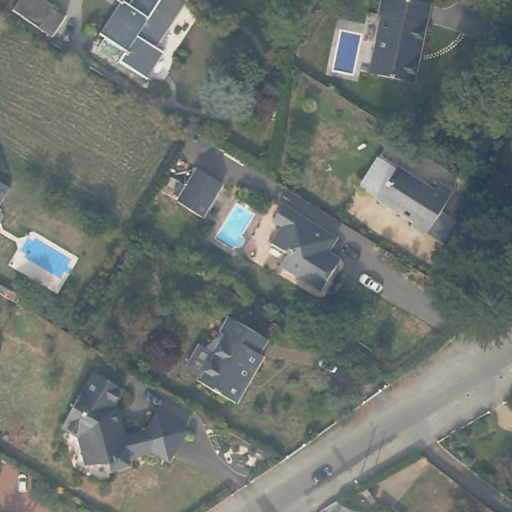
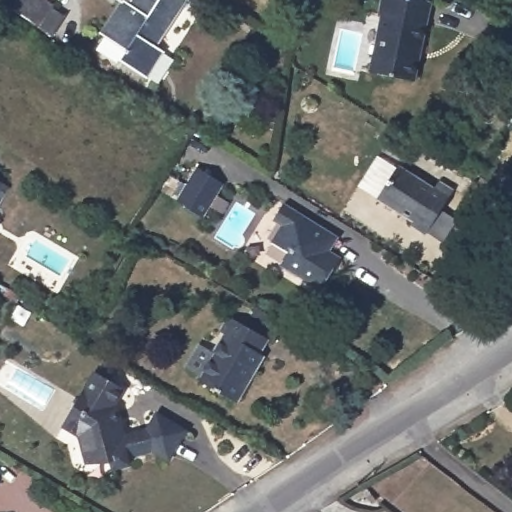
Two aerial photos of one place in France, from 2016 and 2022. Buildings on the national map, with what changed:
unchanged [(37,13),(54,23),(43,40),(4,15),(12,0),(24,0),(40,8),(37,13)]
unchanged [(121,65),(116,69),(95,56),(103,44),(96,40),(120,6),(116,4),(118,0),(184,0),(187,2),(155,50),(160,54),(167,59),(150,84),(143,79),(121,65)]
unchanged [(374,66),(382,13),(376,12),(377,0),(428,0),(417,74),(374,66)]
unchanged [(471,79),(510,105),(470,165),(431,140),(471,79)]
unchanged [(442,183),(457,192),(430,236),(416,228),(418,224),(381,202),(381,201),(363,191),(381,161),(399,171),(400,170),(437,192),(442,183)]
unchanged [(9,185),(0,202),(0,181),(9,185)]
unchanged [(188,192),(213,208),(196,234),(171,218),(188,192)]
unchanged [(341,262),(326,287),(280,259),(288,247),(271,236),(281,219),(273,214),(283,198),(343,234),(334,248),(345,255),(341,262)]
unchanged [(269,335),(260,351),(268,357),(241,403),(198,379),(200,376),(186,368),(200,344),(214,353),(225,334),(219,330),(228,312),(269,335)]
unchanged [(147,434),(156,418),(184,434),(168,462),(152,453),(126,460),(128,468),(113,472),(109,461),(98,464),(85,456),(80,439),(63,429),(93,377),(122,393),(112,409),(116,411),(119,423),(123,440),(147,434)]

